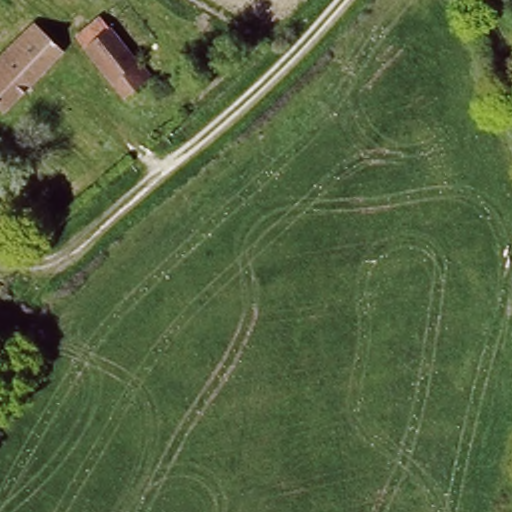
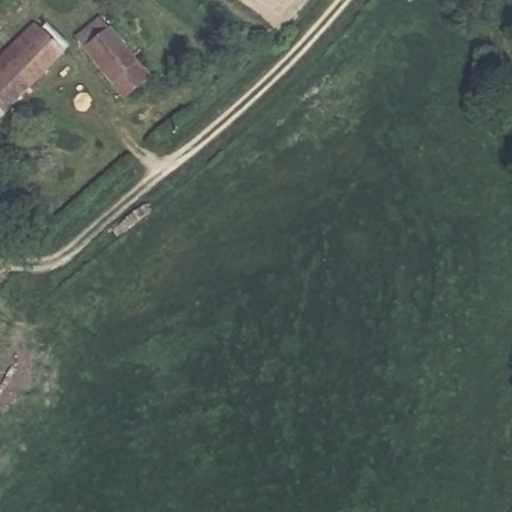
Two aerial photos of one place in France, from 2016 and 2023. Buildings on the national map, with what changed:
unchanged [(122,101),(107,83),(71,40),(97,18),(133,61),(150,80),(122,101)]
unchanged [(32,24),(60,52),(0,114),(0,55),(32,24)]

